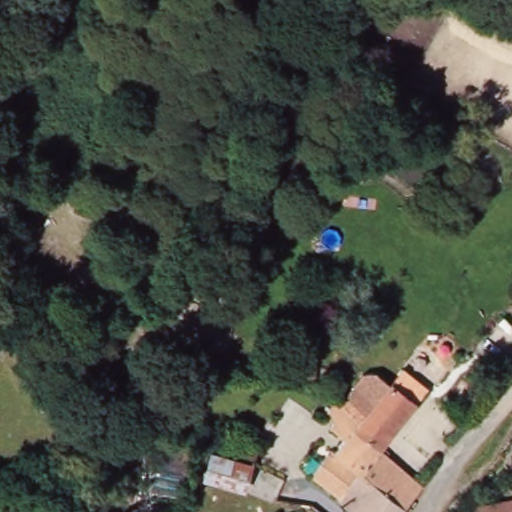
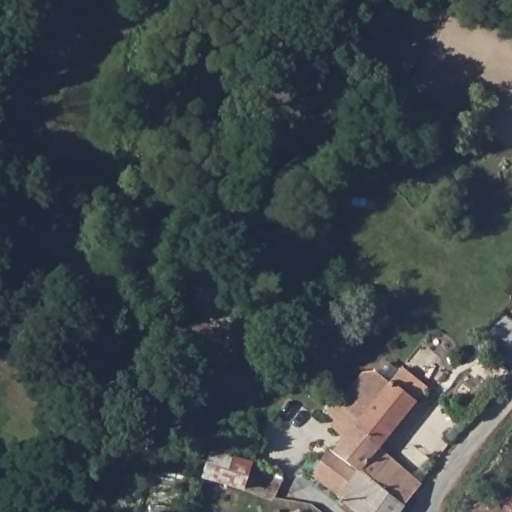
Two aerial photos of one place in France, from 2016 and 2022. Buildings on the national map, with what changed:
unchanged [(299,378),(301,364),(316,366),(314,380),(299,378)]
unchanged [(355,383),(376,400),(401,369),(426,389),(379,448),(354,425),(356,423),(358,421),(339,403),(355,383)]
unchanged [(339,403),(358,421),(356,423),(354,425),(379,448),(339,497),(311,475),(328,449),(334,451),(344,439),(330,426),(334,421),(326,414),(336,401),(339,403)]
unchanged [(230,438),(253,447),(249,460),(226,452),(230,438)]
unchanged [(339,498),(339,497),(379,448),(419,483),(420,484),(400,512),(354,512),(338,498),(339,498)]
unchanged [(245,464),(238,489),(199,478),(207,452),(245,464)]
unchanged [(506,499),(512,498),(512,512),(460,512),(474,509),(473,505),(506,499)]

